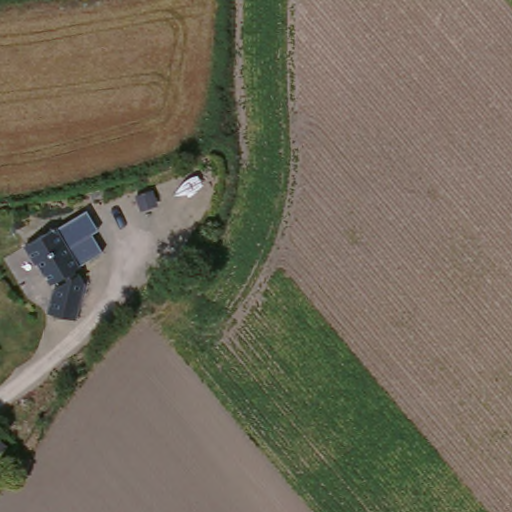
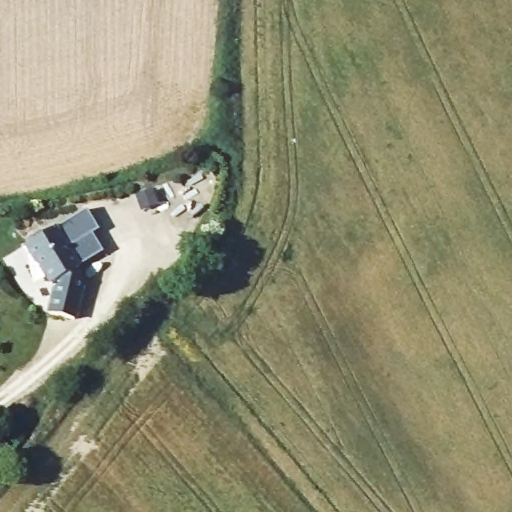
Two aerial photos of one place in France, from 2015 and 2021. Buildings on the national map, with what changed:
unchanged [(76,270),(77,270),(73,273),(75,277),(77,276),(81,282),(70,321),(46,314),(53,288),(56,286),(53,282),(48,285),(36,263),(34,264),(23,246),(53,229),(54,230),(68,222),(86,212),(98,232),(91,236),(102,255),(76,270)]

